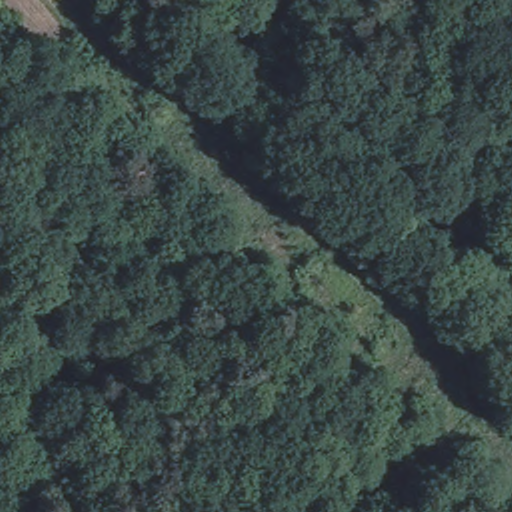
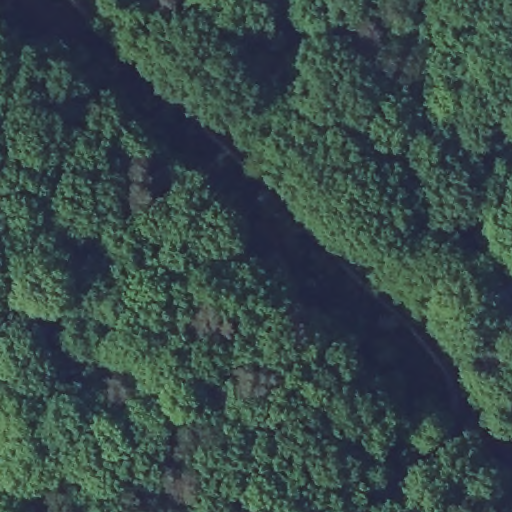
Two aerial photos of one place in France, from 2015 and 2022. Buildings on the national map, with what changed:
[]

